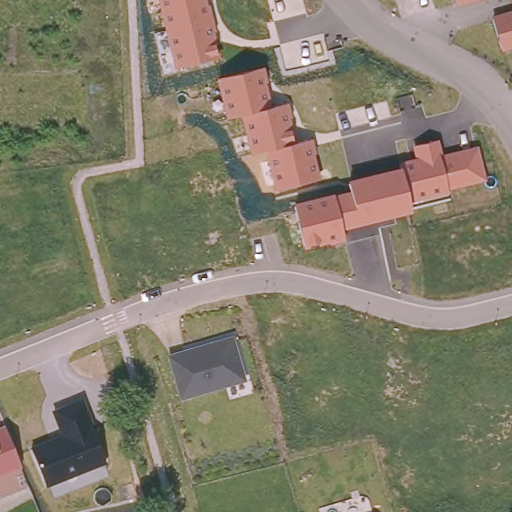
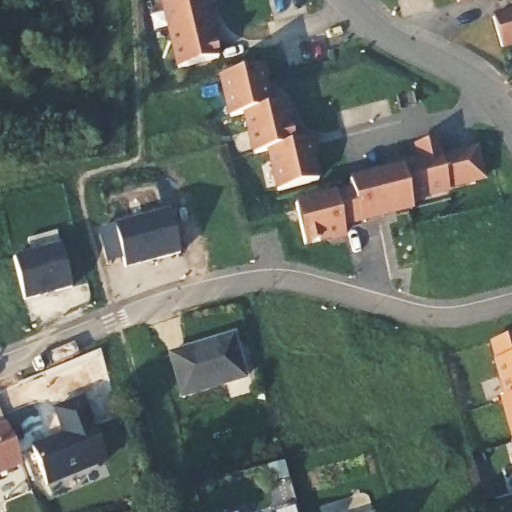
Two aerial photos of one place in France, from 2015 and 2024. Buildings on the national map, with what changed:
unchanged [(210,4),(217,43),(214,44),(217,58),(175,67),(167,29),(164,29),(158,0),(206,0),(207,4),(210,4)]
unchanged [(456,0),(465,0),(457,2),(456,0)]
unchanged [(492,18),(512,12),(512,44),(501,47),(492,18)]
unchanged [(265,68),(268,84),(266,85),(271,107),(290,102),(292,116),(289,117),(295,142),(313,138),(317,156),(315,156),(320,181),(276,191),(266,152),(251,156),(242,115),(226,117),(217,79),(265,68)]
unchanged [(333,192),(335,197),(350,192),(347,182),(401,168),(400,162),(415,159),(413,146),(439,140),(442,155),(478,146),(486,181),(448,190),(448,192),(407,201),(410,213),(342,231),(345,241),(330,245),(328,242),(305,249),(294,202),(333,192)]
new [(170,211),(180,255),(125,269),(124,260),(107,264),(97,232),(170,211)]
new [(58,250),(70,291),(22,303),(11,262),(58,250)]
unchanged [(232,335),(246,378),(183,397),(169,353),(232,335)]
new [(512,399),(506,401),(490,344),(512,337),(512,399)]
new [(512,399),(512,443),(500,403),(506,401),(512,399)]
unchanged [(61,435),(52,411),(82,400),(106,463),(45,487),(31,446),(61,435)]
unchanged [(21,465),(0,473),(0,425),(5,423),(21,465)]

